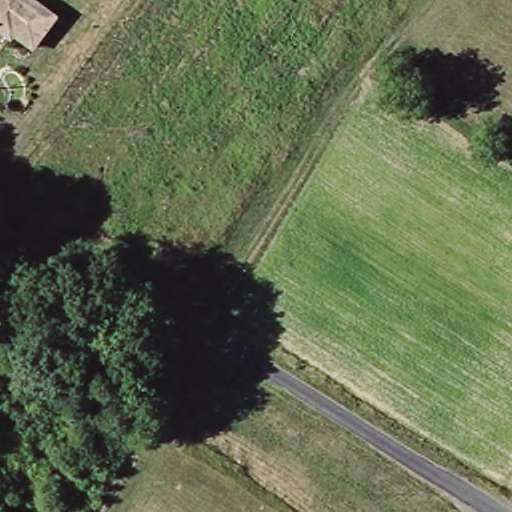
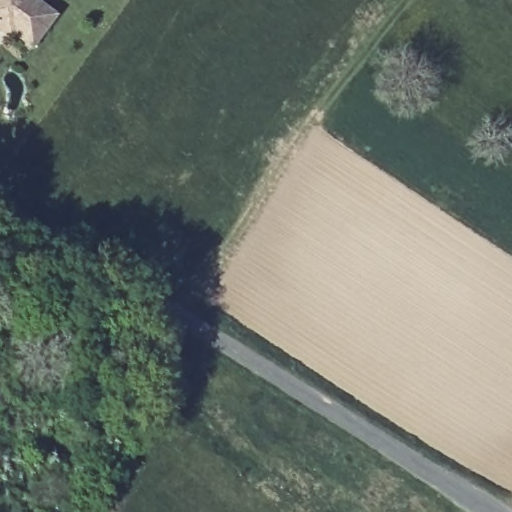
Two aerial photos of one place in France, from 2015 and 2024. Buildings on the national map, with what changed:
unchanged [(36,52),(16,37),(11,43),(0,35),(0,0),(36,0),(61,18),(36,52)]

